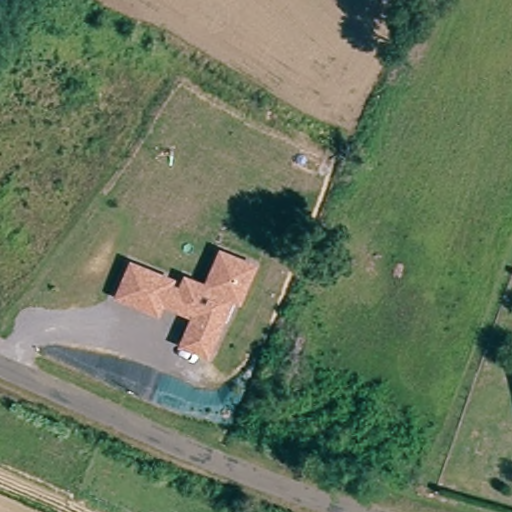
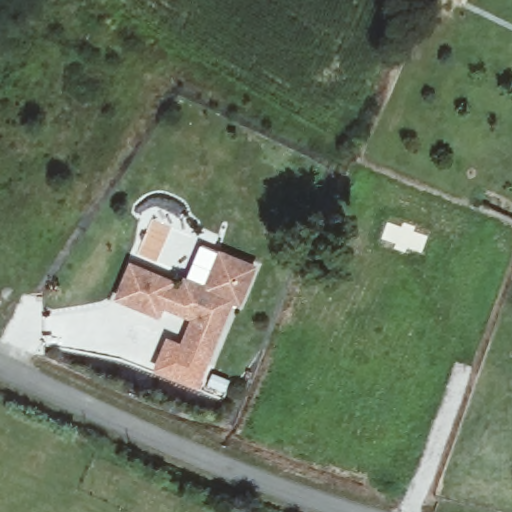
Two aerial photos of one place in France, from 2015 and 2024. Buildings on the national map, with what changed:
unchanged [(207,353),(182,343),(195,313),(173,305),(162,300),(158,310),(118,293),(131,261),(171,277),(170,283),(180,287),(185,275),(206,284),(220,249),(254,262),(239,298),(231,295),(220,323),(207,353)]
new [(207,353),(212,355),(197,390),(152,372),(166,336),(182,343),(207,353)]

